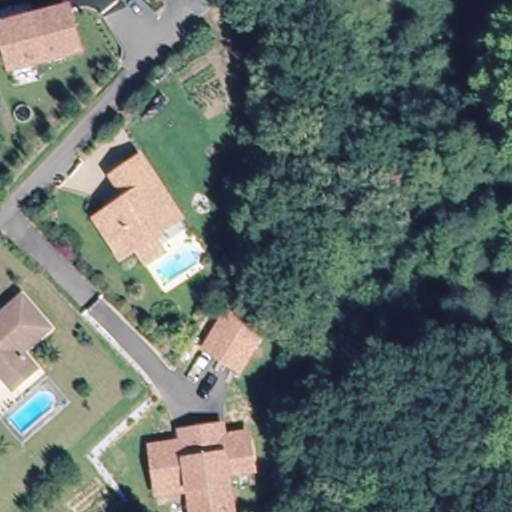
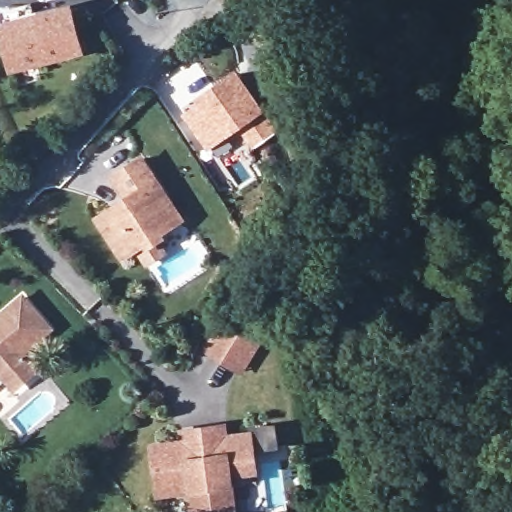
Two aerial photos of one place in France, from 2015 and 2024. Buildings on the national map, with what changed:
unchanged [(11,67),(1,26),(0,20),(0,11),(31,4),(35,18),(70,10),(79,51),(11,67)]
new [(183,114),(200,102),(197,97),(239,69),(279,127),(253,147),(239,127),(208,151),(183,114)]
unchanged [(166,226),(152,235),(163,251),(144,263),(133,246),(119,255),(96,219),(126,199),(112,176),(139,160),(169,206),(177,219),(166,226)]
unchanged [(0,327),(0,317),(19,299),(46,328),(19,352),(35,370),(18,385),(10,377),(0,376),(0,329),(1,328),(0,327)]
unchanged [(265,332),(241,372),(200,350),(228,308),(265,332)]
unchanged [(261,468),(229,474),(237,512),(196,512),(193,490),(160,496),(153,450),(178,446),(184,445),(183,435),(222,427),(223,433),(224,440),(254,434),(261,468)]

